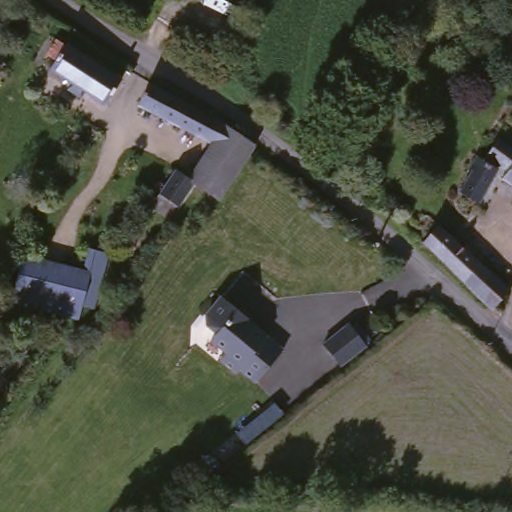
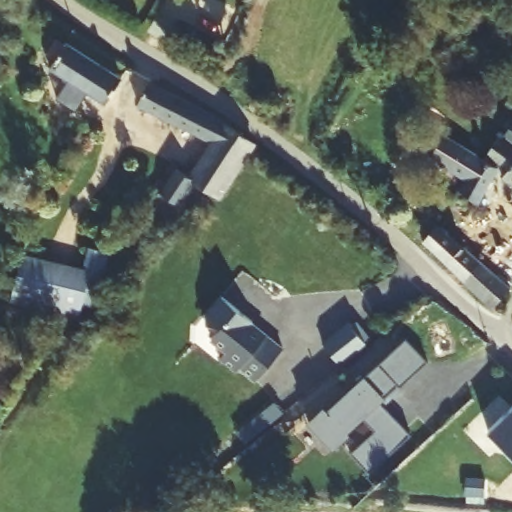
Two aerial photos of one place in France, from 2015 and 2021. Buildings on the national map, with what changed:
unchanged [(93,0),(90,7),(70,0),(93,0)]
unchanged [(73,44),(128,81),(109,107),(49,66),(54,58),(59,51),(64,55),(73,44)]
unchanged [(179,211),(173,211),(165,218),(149,208),(148,207),(175,171),(188,181),(214,146),(145,101),(159,79),(191,97),(235,122),(231,127),(236,131),(260,149),(250,162),(219,204),(213,199),(195,188),(179,211)]
unchanged [(482,154),(494,138),(512,150),(512,185),(499,177),(502,170),(482,154)]
unchanged [(491,166),(475,202),(458,192),(469,172),(464,169),(472,154),(491,166)]
unchanged [(426,246),(442,227),(510,293),(495,312),(426,246)]
unchanged [(100,281),(88,306),(85,306),(83,319),(13,309),(25,267),(100,281)]
unchanged [(245,379),(241,384),(222,370),(228,363),(213,352),(219,344),(208,335),(210,322),(222,305),(254,328),(253,330),(288,355),(260,391),(245,379)]
unchanged [(323,345),(350,324),(369,348),(342,369),(323,345)]
new [(401,388),(402,390),(383,405),(410,436),(370,475),(351,455),(373,433),(364,423),(348,436),(351,438),(334,453),(306,425),(325,410),(327,412),(407,341),(428,362),(401,388)]
new [(512,410),(512,458),(487,432),(512,410)]

